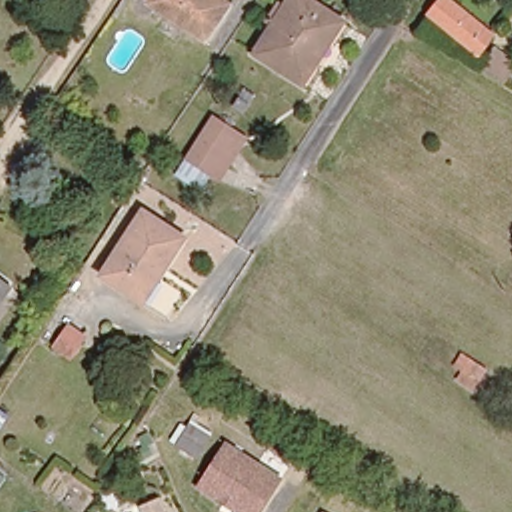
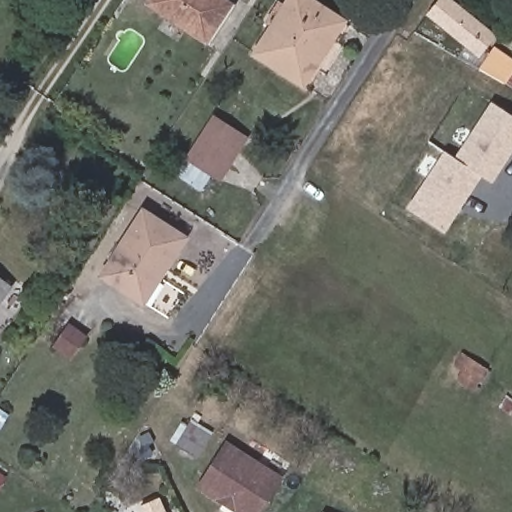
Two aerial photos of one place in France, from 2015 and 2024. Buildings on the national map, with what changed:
unchanged [(152,2),(153,0),(219,0),(229,6),(207,39),(152,2)]
unchanged [(300,86),(256,54),(252,52),(290,0),(313,0),(346,26),(335,40),(313,69),(300,86)]
unchanged [(462,50),(426,18),(441,2),(488,44),(476,57),(465,48),(462,50)]
unchanged [(476,74),(490,57),(511,74),(500,87),(476,74)]
new [(492,183),(482,176),(445,231),(405,208),(443,150),(455,157),(490,101),(512,115),(512,152),(492,183)]
unchanged [(223,178),(217,174),(197,160),(192,157),(217,116),(223,120),(245,134),(251,138),(223,178)]
unchanged [(151,215),(185,238),(165,269),(157,265),(136,297),(109,279),(104,275),(147,213),(151,215)]
unchanged [(0,300),(0,274),(12,283),(0,300)]
unchanged [(90,336),(70,363),(49,350),(67,322),(90,336)]
unchanged [(482,381),(467,372),(475,360),(489,370),(482,381)]
new [(210,432),(195,456),(178,446),(171,441),(181,425),(188,429),(193,421),(210,432)]
unchanged [(277,480),(257,512),(229,512),(195,490),(224,445),(277,480)]
new [(0,478),(4,481),(0,486),(0,478)]
unchanged [(159,497),(165,512),(145,512),(142,505),(159,497)]
unchanged [(326,512),(323,512),(324,510),(326,512)]

